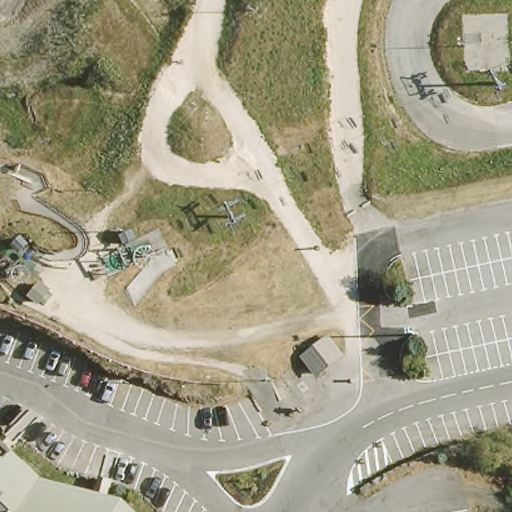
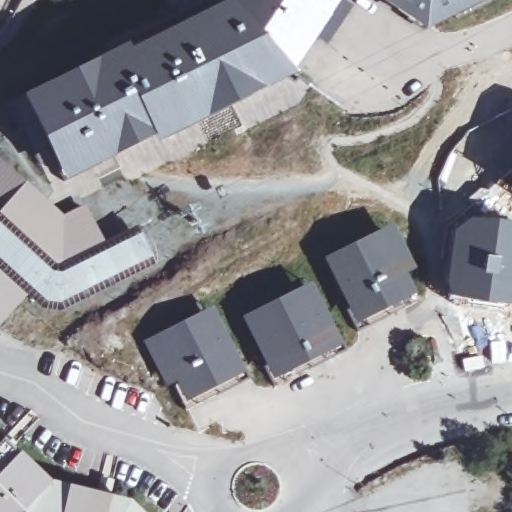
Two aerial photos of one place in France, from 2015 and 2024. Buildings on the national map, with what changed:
new [(317,33),(291,70),(297,76),(158,144),(156,139),(64,182),(22,97),(127,45),(130,51),(224,4),(226,0),(339,0),(338,1),(350,9),(329,40),(317,33)]
new [(376,0),(487,0),(425,32),(376,0)]
new [(98,235),(102,244),(55,266),(8,224),(17,215),(8,207),(9,205),(0,198),(0,163),(64,224),(62,219),(84,209),(98,235)]
new [(465,218),(471,216),(506,222),(512,224),(512,306),(475,303),(445,296),(443,278),(449,230),(465,218)]
new [(8,224),(55,266),(102,244),(137,227),(155,263),(56,310),(42,308),(0,270),(0,217),(8,224)]
new [(388,223),(413,264),(402,270),(415,293),(358,323),(324,260),(388,223)]
new [(24,295),(19,300),(0,320),(0,274),(24,295)]
new [(242,316),(311,281),(342,344),(273,379),(242,316)]
new [(165,387),(143,341),(212,306),(244,371),(185,402),(176,382),(165,387)]
demolished [(345,358),(314,380),(297,355),(328,335),(345,358)]
unchanged [(5,442),(51,485),(98,493),(133,501),(139,496),(143,499),(140,503),(142,508),(153,498),(161,506),(155,512),(0,512),(0,446),(5,442)]

